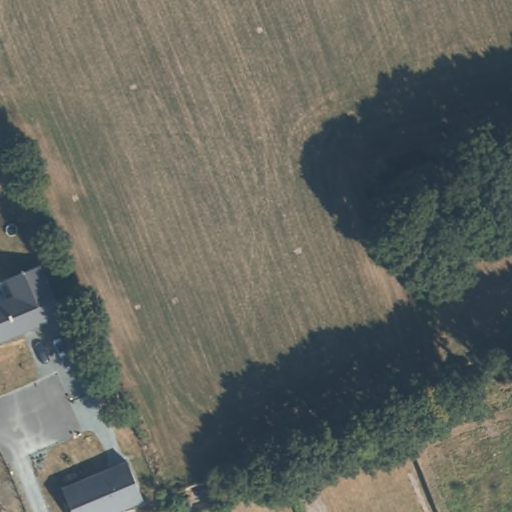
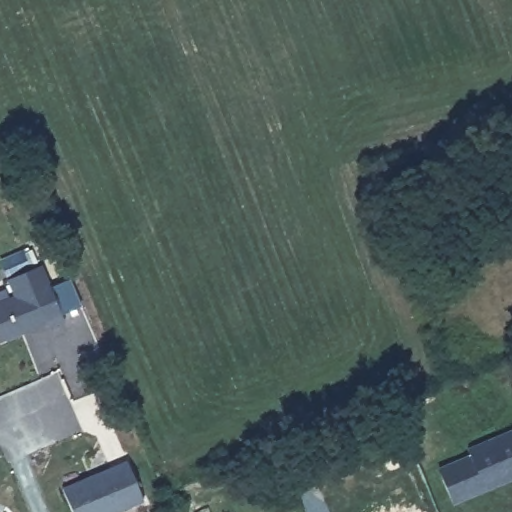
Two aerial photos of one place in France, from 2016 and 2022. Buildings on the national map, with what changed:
unchanged [(0,297),(11,293),(4,276),(39,262),(61,319),(44,326),(43,320),(27,326),(19,329),(0,337),(0,297)]
new [(469,452),(467,447),(512,428),(512,430),(512,481),(452,506),(437,467),(469,452)]
unchanged [(61,489),(88,478),(89,482),(95,480),(98,473),(126,461),(143,501),(118,512),(71,512),(61,489)]

